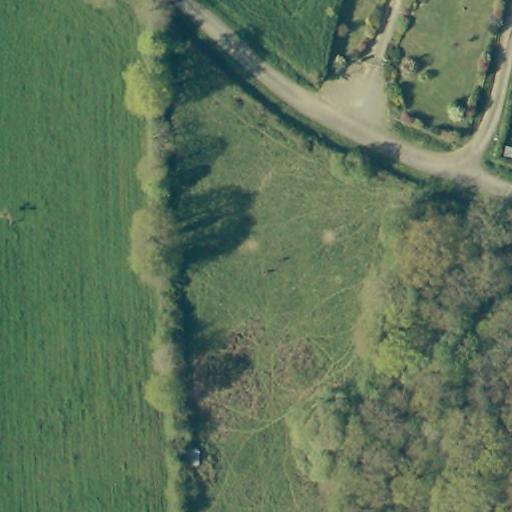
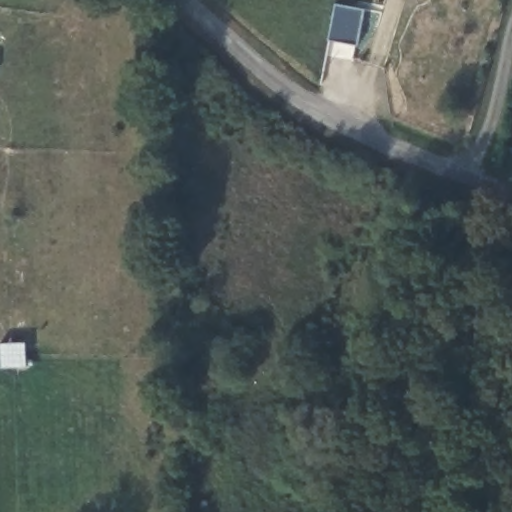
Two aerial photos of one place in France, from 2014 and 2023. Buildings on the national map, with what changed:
new [(335,2),(365,8),(357,45),(328,40),(335,2)]

